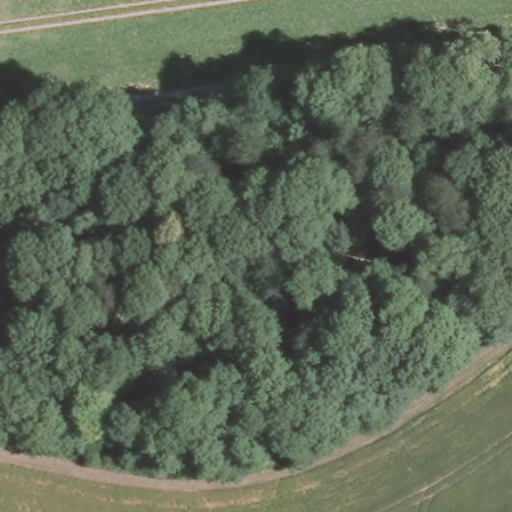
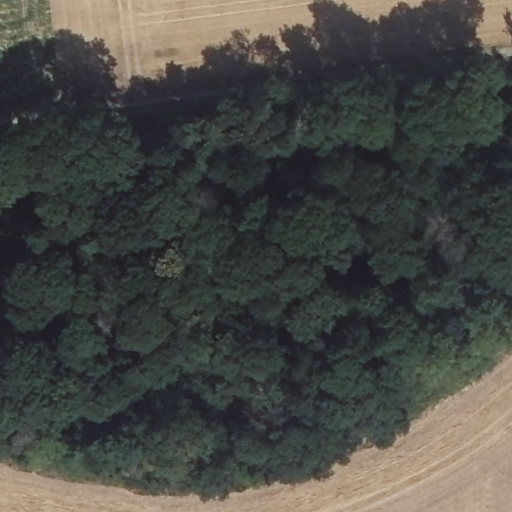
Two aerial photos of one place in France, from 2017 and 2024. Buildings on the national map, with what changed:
unchanged [(16,233),(0,287),(0,230),(16,233)]

